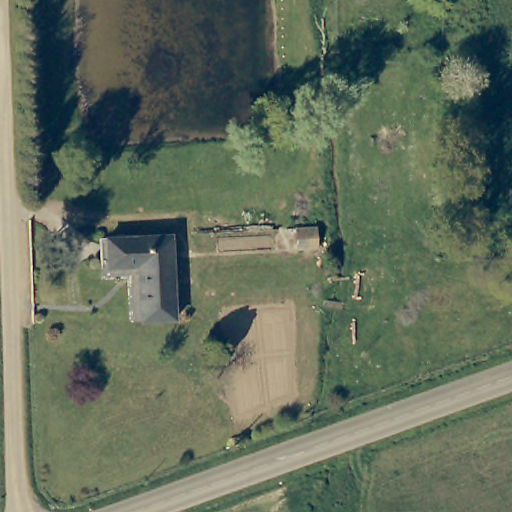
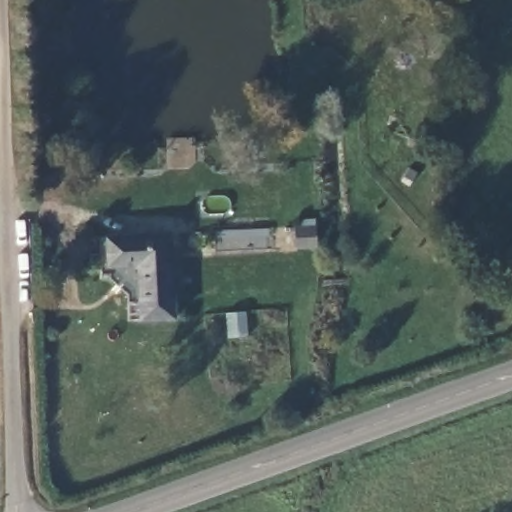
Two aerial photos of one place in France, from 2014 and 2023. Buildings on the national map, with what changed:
unchanged [(183,318),(149,320),(141,261),(112,262),(109,235),(177,232),(183,318)]

